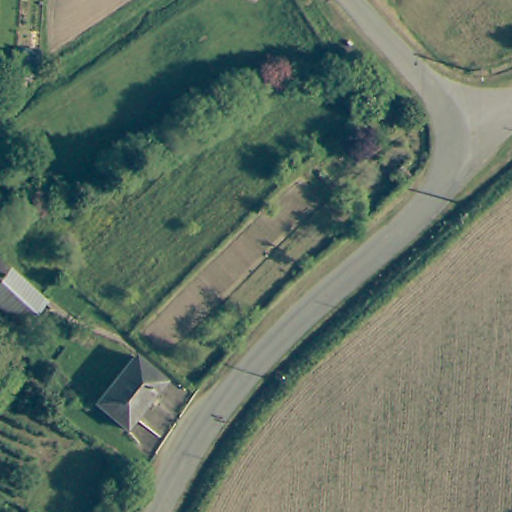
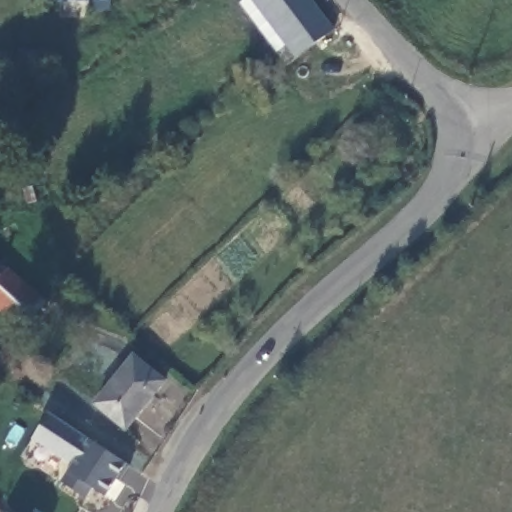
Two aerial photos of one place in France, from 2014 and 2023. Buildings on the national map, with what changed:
new [(295,50),(257,0),(312,0),(329,23),(338,35),(303,62),(295,50)]
unchanged [(0,284),(0,262),(11,272),(0,284)]
unchanged [(48,304),(26,329),(0,305),(0,284),(11,272),(42,298),(48,304)]
unchanged [(169,380),(130,431),(100,407),(140,356),(169,380)]
new [(106,498),(96,492),(87,501),(62,485),(72,467),(35,441),(52,415),(127,466),(106,498)]

